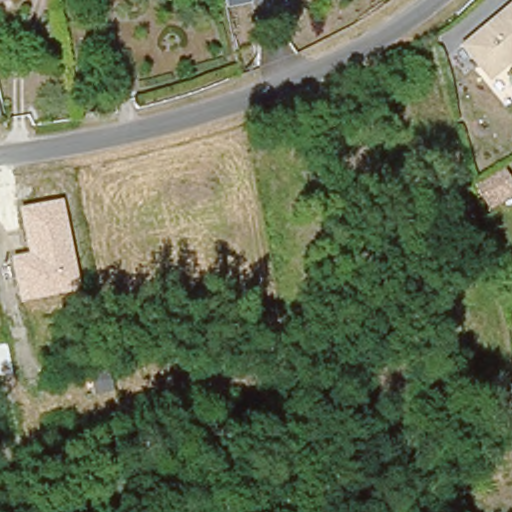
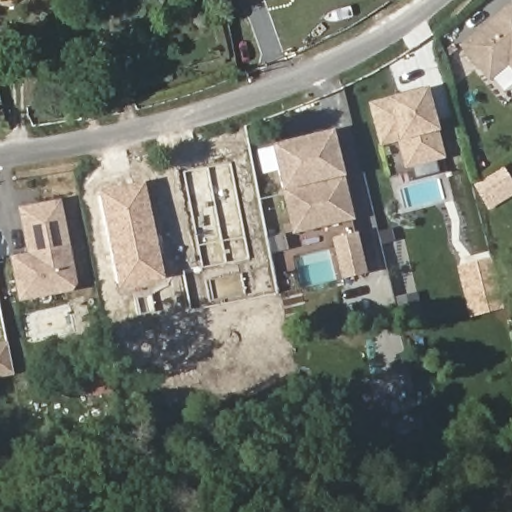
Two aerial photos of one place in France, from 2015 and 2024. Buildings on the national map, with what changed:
unchanged [(503,106),(473,68),(476,66),(459,43),(511,0),(512,0),(512,98),(503,106)]
new [(387,98),(428,87),(440,129),(445,157),(405,167),(398,141),(379,146),(368,102),(387,98)]
new [(344,175),(353,219),(291,234),(281,190),(270,145),(332,129),(344,175)]
new [(489,207),(485,201),(477,187),(502,172),(510,186),(512,188),(512,193),(489,207)]
new [(164,280),(117,289),(97,191),(144,181),(164,280)]
unchanged [(18,302),(9,256),(28,252),(18,207),(61,199),(77,288),(18,302)]
new [(11,372),(0,374),(0,348),(6,346),(11,372)]

